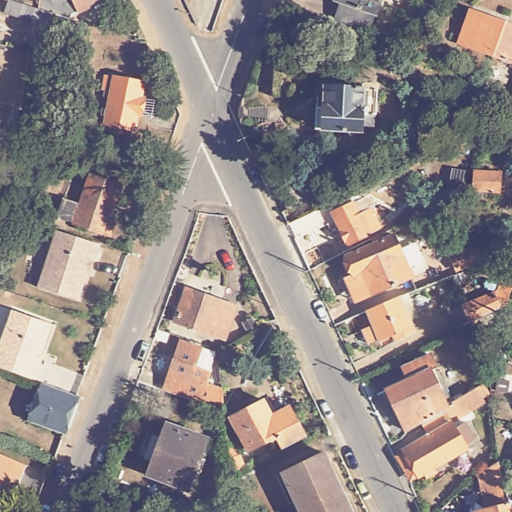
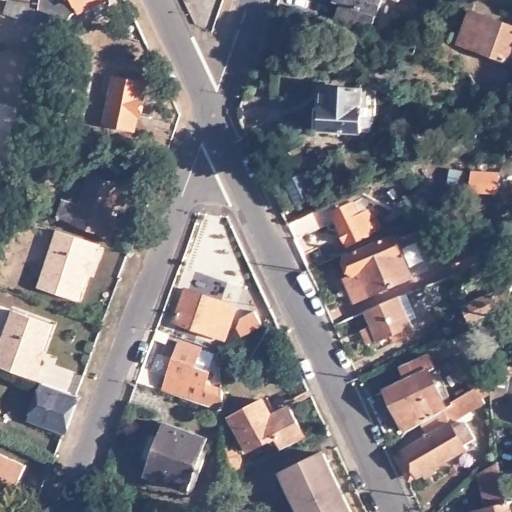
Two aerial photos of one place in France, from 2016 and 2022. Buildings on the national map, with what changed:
unchanged [(71,12),(62,16),(56,5),(62,2),(65,0),(66,0),(70,6),(78,1),(77,0),(112,0),(113,3),(76,19),(71,12)]
unchanged [(337,0),(375,0),(367,23),(333,10),(337,0)]
unchanged [(41,15),(62,23),(59,33),(11,19),(15,8),(15,7),(41,15)]
unchanged [(472,13),(512,28),(512,64),(460,44),(472,13)]
unchanged [(147,114),(137,111),(132,110),(130,124),(102,118),(107,93),(101,91),(102,84),(99,84),(102,70),(139,78),(136,94),(140,94),(150,96),(147,114)]
unchanged [(369,99),(368,105),(374,106),(372,118),(364,116),(363,124),(316,119),(318,98),(323,98),(327,76),(366,81),(363,98),(369,99)]
unchanged [(453,153),(457,138),(472,141),(471,156),(453,153)]
unchanged [(288,210),(275,182),(302,169),(315,198),(288,210)]
unchanged [(473,192),(475,172),(501,173),(501,192),(473,192)]
unchanged [(116,219),(111,234),(76,223),(92,175),(122,184),(111,217),(116,219)]
unchanged [(358,213),(375,204),(380,214),(377,214),(382,229),(348,245),(341,229),(332,212),(337,209),(353,202),(358,213)]
unchanged [(40,287),(58,229),(102,244),(97,259),(93,259),(80,299),(40,287)]
unchanged [(362,300),(351,278),(356,275),(347,258),(374,244),(372,240),(378,237),(381,242),(393,235),(413,277),(362,300)]
unchanged [(452,256),(474,247),(481,261),(458,271),(452,256)]
unchanged [(510,255),(512,256),(512,263),(504,261),(508,254),(510,255)]
unchanged [(494,295),(495,292),(501,272),(504,269),(512,272),(512,277),(505,304),(502,311),(472,325),(465,309),(494,295)]
unchanged [(225,339),(177,322),(187,294),(189,288),(210,295),(237,306),(225,339)]
unchanged [(365,330),(373,327),(367,312),(398,298),(406,295),(416,318),(410,321),(415,333),(399,340),(397,335),(381,343),(380,340),(371,344),(365,330)]
unchanged [(44,364),(37,382),(0,368),(0,351),(14,313),(53,327),(40,363),(44,364)]
unchanged [(219,389),(221,411),(161,391),(177,343),(197,349),(192,368),(207,372),(203,384),(219,389)]
unchanged [(417,419),(403,427),(384,386),(405,376),(400,364),(425,352),(431,364),(425,367),(442,405),(417,419)]
unchanged [(423,474),(420,469),(415,472),(406,477),(391,451),(400,446),(425,432),(417,419),(442,405),(448,402),(447,399),(471,383),(482,399),(447,419),(451,424),(461,419),(471,436),(461,441),(462,444),(428,464),(431,469),(423,474)]
unchanged [(30,421),(44,384),(80,397),(66,434),(30,421)]
unchanged [(291,444),(279,450),(272,437),(240,454),(237,449),(242,446),(227,417),(260,400),(268,417),(286,408),(302,439),(291,444)]
unchanged [(155,448),(159,436),(165,438),(169,424),(214,439),(205,466),(155,448)]
unchanged [(150,476),(155,462),(151,461),(155,448),(205,466),(195,492),(150,476)]
unchanged [(27,466),(12,502),(0,497),(0,454),(27,466)]
unchanged [(227,469),(226,458),(234,455),(238,465),(227,469)]
unchanged [(283,474),(324,455),(351,512),(301,512),(283,474)]
unchanged [(512,502),(503,504),(498,483),(507,480),(511,496),(512,499),(512,502)]
unchanged [(157,508),(166,511),(166,512),(155,512),(157,508)]

